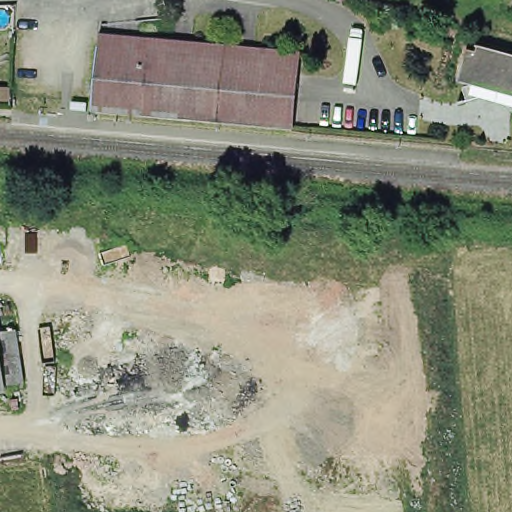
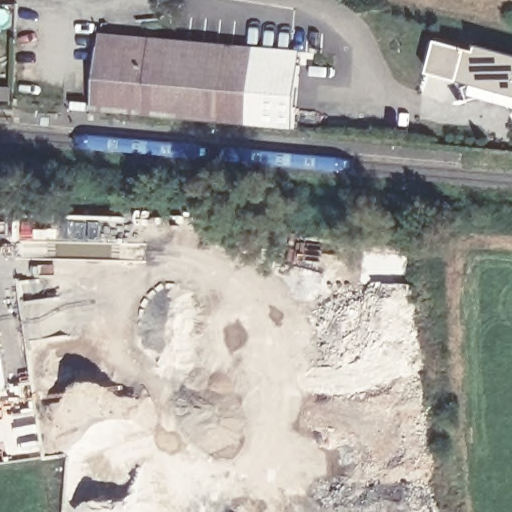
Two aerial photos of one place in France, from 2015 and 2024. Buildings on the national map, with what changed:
unchanged [(472,47),(482,50),(484,44),(512,51),(512,86),(505,82),(490,81),(477,83),(464,80),(472,47)]
unchanged [(255,127),(242,125),(137,116),(122,115),(101,113),(90,112),(99,47),(272,62),(267,128),(255,127)]
unchanged [(267,128),(272,62),(297,65),(291,130),(267,128)]
unchanged [(12,90),(12,104),(0,102),(0,89),(12,90)]
unchanged [(7,383),(0,335),(0,331),(20,329),(27,380),(7,383)]
unchanged [(7,383),(7,387),(0,388),(0,335),(7,383)]

